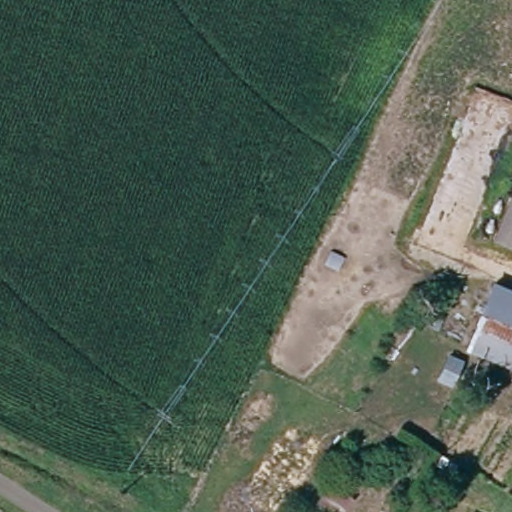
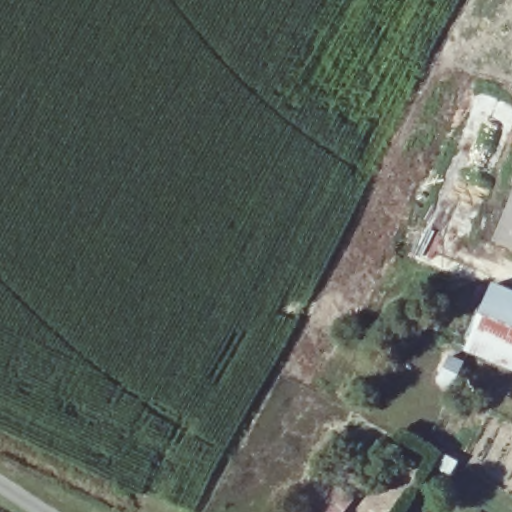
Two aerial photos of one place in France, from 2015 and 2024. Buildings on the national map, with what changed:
unchanged [(512,197),(512,249),(494,242),(512,197)]
unchanged [(470,347),(501,283),(512,289),(512,368),(470,347)]
unchanged [(356,497),(346,512),(328,512),(319,505),(335,485),(356,497)]

